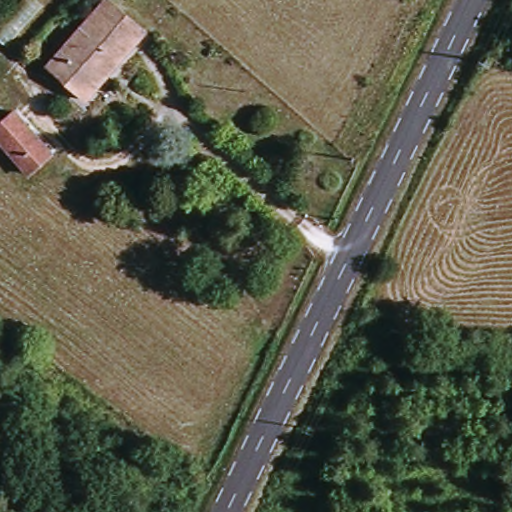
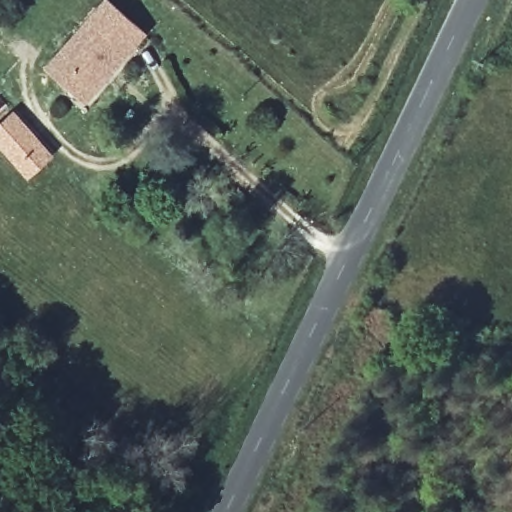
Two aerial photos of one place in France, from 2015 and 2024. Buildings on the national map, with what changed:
unchanged [(101,0),(109,0),(140,27),(82,92),(47,61),(101,0)]
unchanged [(19,108),(57,143),(35,167),(0,134),(0,128),(19,108)]

